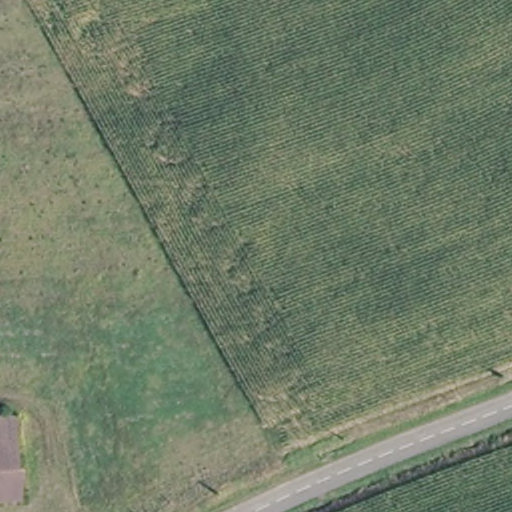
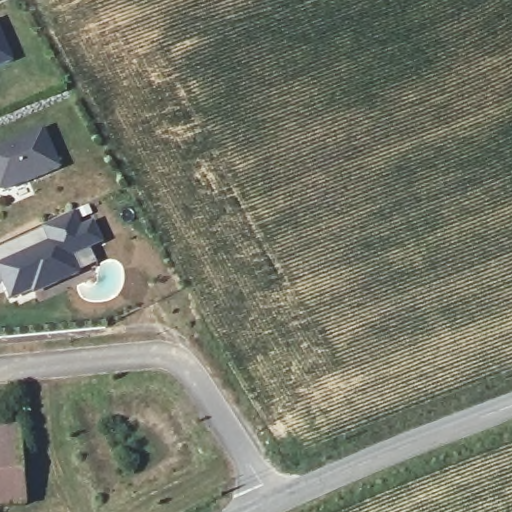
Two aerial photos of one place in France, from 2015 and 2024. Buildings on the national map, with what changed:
new [(0,66),(0,37),(11,62),(0,66)]
new [(61,167),(7,190),(0,187),(0,148),(45,129),(61,167)]
new [(0,266),(48,243),(42,227),(74,214),(80,229),(94,223),(102,242),(70,257),(77,273),(34,296),(32,291),(12,300),(0,277),(0,266)]
unchanged [(0,424),(17,423),(25,507),(0,508),(0,424)]

